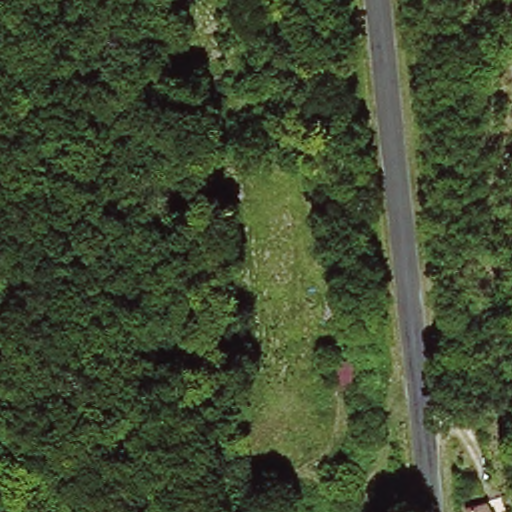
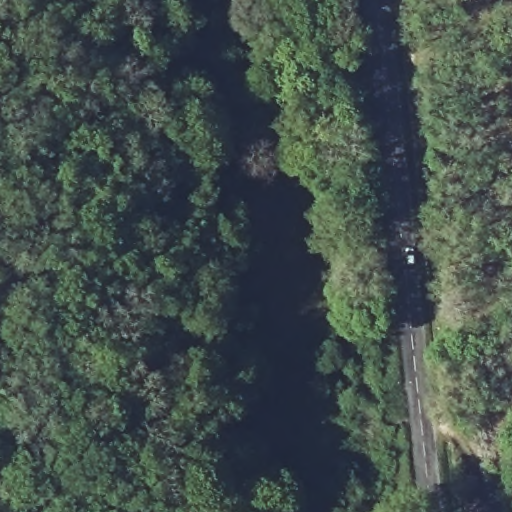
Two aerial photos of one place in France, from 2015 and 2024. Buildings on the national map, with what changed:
unchanged [(354,332),(352,395),(331,395),(332,332),(354,332)]
unchanged [(462,505),(475,503),(477,510),(487,507),(489,512),(464,512),(462,505)]

